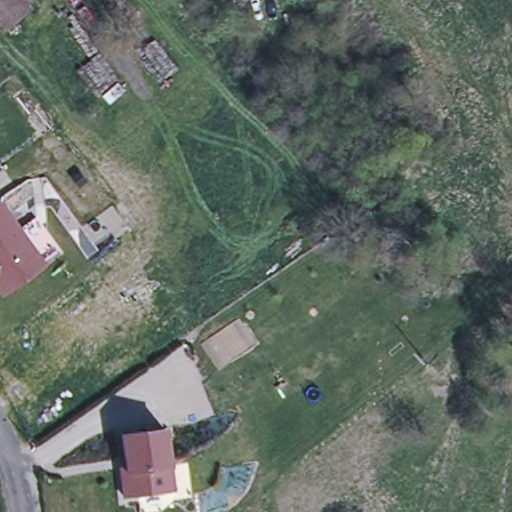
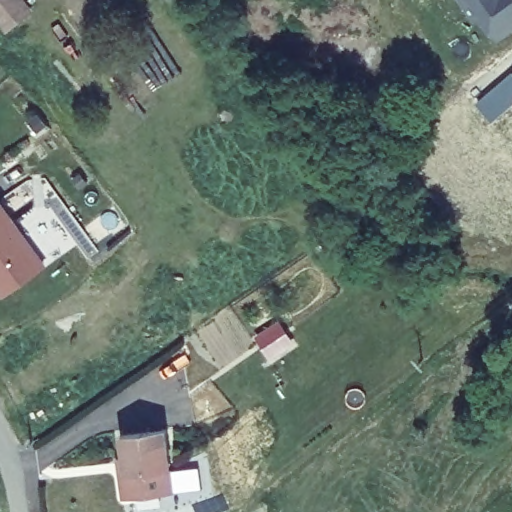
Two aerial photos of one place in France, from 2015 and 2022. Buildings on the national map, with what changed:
unchanged [(0,27),(0,0),(26,0),(37,12),(8,36),(0,27)]
new [(512,30),(495,41),(480,20),(475,22),(459,0),(512,0),(512,30)]
new [(512,105),(490,124),(476,105),(512,75),(512,105)]
unchanged [(2,205),(44,265),(8,290),(2,288),(0,286),(0,207),(2,205)]
new [(278,323),(295,347),(268,363),(255,338),(278,323)]
unchanged [(127,458),(123,435),(167,430),(175,492),(125,497),(122,473),(120,458),(127,458)]

